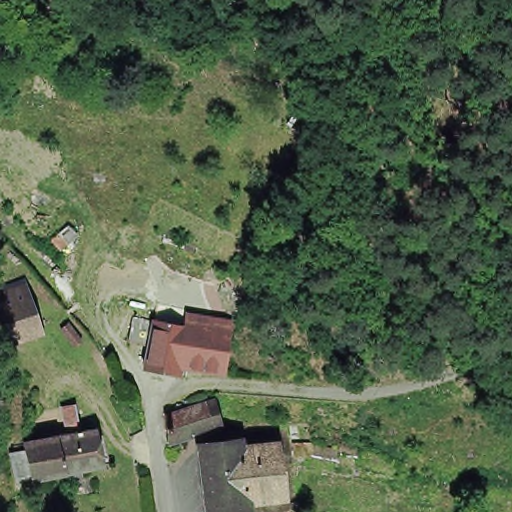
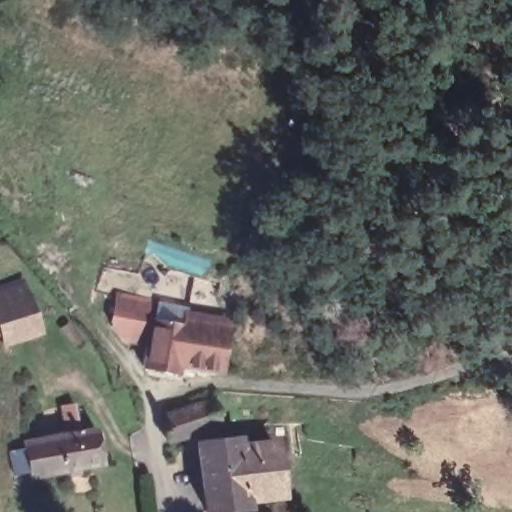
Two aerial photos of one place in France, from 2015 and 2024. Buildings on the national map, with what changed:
unchanged [(288,123),(294,115),(313,130),(307,139),(288,123)]
unchanged [(29,278),(45,324),(11,335),(9,328),(0,331),(0,288),(29,278)]
unchanged [(187,369),(189,353),(183,352),(179,373),(143,367),(148,345),(128,341),(133,316),(153,320),(188,328),(189,323),(225,326),(224,347),(223,370),(187,369)]
unchanged [(103,460),(35,472),(34,466),(15,470),(10,446),(24,444),(23,438),(67,430),(62,403),(76,400),(81,427),(97,425),(103,460)]
unchanged [(213,401),(221,425),(187,435),(168,441),(164,416),(180,411),(213,401)]
unchanged [(300,423),(303,453),(295,455),(291,425),(300,423)]
unchanged [(245,500),(247,507),(206,512),(198,445),(239,441),(240,447),(274,443),(280,496),(245,500)]
unchanged [(336,457),(312,453),(313,444),(338,449),(336,457)]

